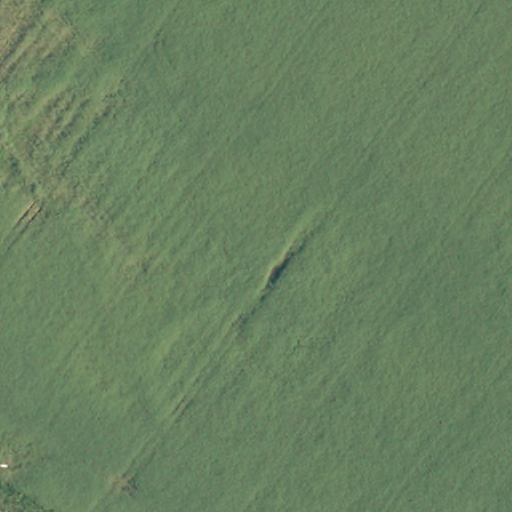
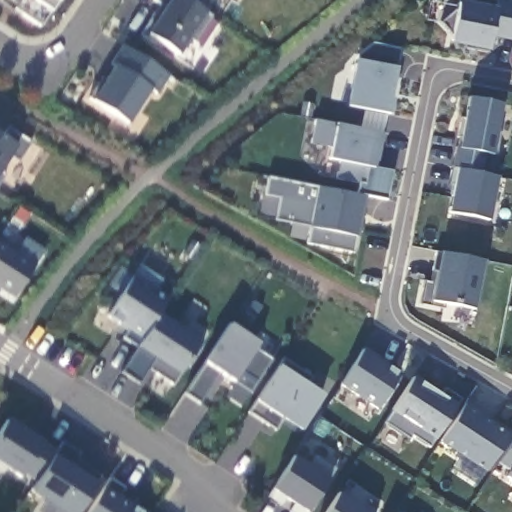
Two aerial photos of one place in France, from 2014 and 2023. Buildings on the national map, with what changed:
new [(14,10),(20,0),(56,0),(39,26),(14,10)]
new [(213,15),(196,42),(189,37),(178,56),(147,36),(165,7),(154,0),(190,0),(205,10),(213,15)]
new [(190,0),(212,0),(205,10),(190,0)]
new [(491,37),(487,51),(451,45),(452,35),(441,23),(457,9),(459,0),(460,0),(501,0),(512,2),(512,42),(491,37)]
new [(359,54),(373,42),(402,49),(399,67),(392,99),(394,100),(391,116),(347,107),(355,61),(359,54)]
new [(169,76),(158,95),(150,90),(128,125),(91,101),(117,65),(114,62),(124,46),(169,76)]
new [(503,103),(493,155),(484,152),(480,175),(452,170),(457,136),(461,137),(469,97),(503,103)]
new [(336,125),(381,134),(374,168),(393,171),(388,200),(366,197),(358,236),(354,253),(306,244),(309,228),(274,221),(279,199),(264,195),(269,177),(319,187),(358,194),(359,184),(336,180),(339,162),(328,160),(330,148),(310,145),(314,121),(336,125)]
new [(11,127),(33,142),(18,162),(9,157),(0,171),(0,134),(3,136),(11,127)]
new [(491,222),(449,214),(452,170),(480,175),(481,172),(500,176),(491,222)]
new [(0,184),(0,172),(5,176),(0,184)]
new [(15,298),(0,289),(0,241),(38,265),(15,298)]
new [(484,260),(474,311),(448,305),(447,309),(420,305),(424,281),(431,283),(437,251),(442,252),(484,260)]
new [(134,277),(140,265),(163,281),(156,290),(169,299),(142,339),(137,347),(123,338),(127,330),(107,317),(134,277)]
new [(179,373),(171,385),(148,370),(139,383),(121,372),(137,347),(142,339),(159,315),(201,341),(179,373)]
new [(250,392),(232,382),(222,375),(213,380),(199,401),(185,392),(203,363),(229,323),(260,343),(255,349),(270,358),(250,392)]
new [(400,374),(377,410),(338,384),(361,348),(400,374)]
new [(307,383),(327,395),(299,433),(281,420),(275,430),(248,413),(255,401),(279,366),(283,360),(311,377),(307,383)]
new [(394,411),(417,377),(459,405),(437,438),(429,447),(409,433),(406,439),(385,423),(394,411)]
new [(464,405),(509,435),(486,470),(443,441),(464,405)]
new [(43,440),(57,451),(63,442),(80,455),(76,461),(100,477),(98,481),(77,512),(60,512),(30,493),(36,482),(23,473),(19,476),(0,464),(0,433),(9,419),(43,440)]
new [(512,443),(512,482),(506,478),(510,472),(499,464),(512,443)]
new [(309,466),(317,455),(336,467),(329,480),(308,512),(307,512),(273,490),(294,456),(309,466)]
new [(106,487),(111,478),(125,488),(120,496),(146,512),(89,512),(106,487)]
new [(366,512),(326,512),(338,493),(366,512)]

